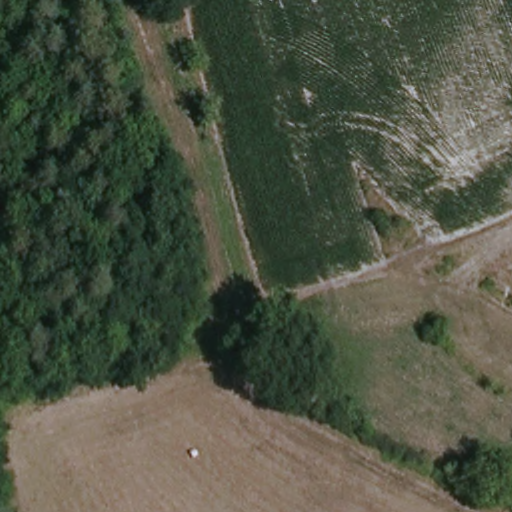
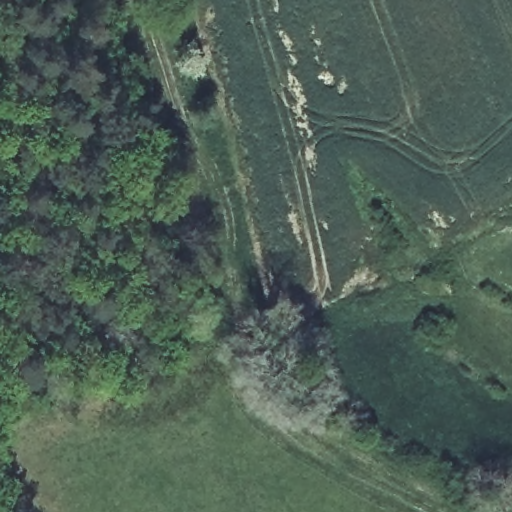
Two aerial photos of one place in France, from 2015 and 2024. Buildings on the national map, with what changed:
[]

